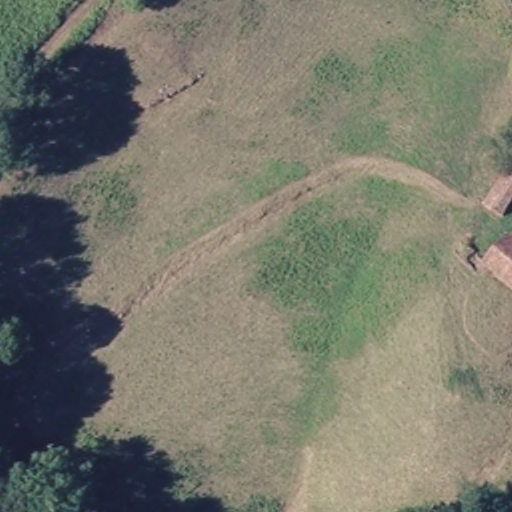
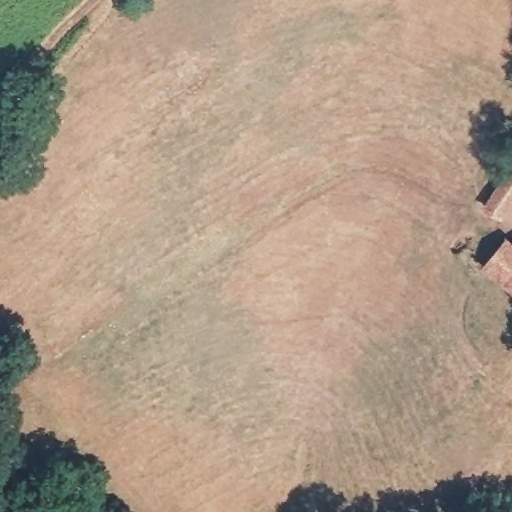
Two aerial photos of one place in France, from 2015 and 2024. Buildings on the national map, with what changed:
unchanged [(483,207),(509,174),(512,175),(512,208),(504,219),(483,207)]
unchanged [(512,243),(512,277),(495,264),(512,243)]

